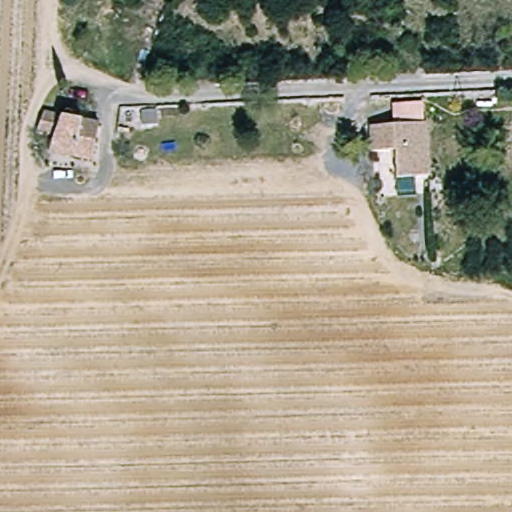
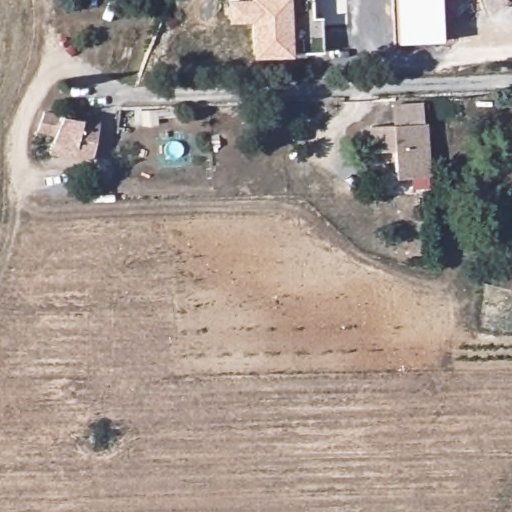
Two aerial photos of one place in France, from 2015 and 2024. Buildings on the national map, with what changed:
new [(291,56),(251,58),(250,21),(229,21),(228,0),(312,0),(312,18),(320,18),(322,51),(291,53),(291,56)]
new [(396,41),(394,0),(440,0),(441,39),(396,41)]
unchanged [(55,144),(55,139),(57,135),(40,134),(40,116),(57,118),(67,119),(100,121),(97,156),(79,155),(56,153),(55,144)]
unchanged [(430,178),(394,179),(393,156),(368,156),(368,130),(428,128),(430,178)]

